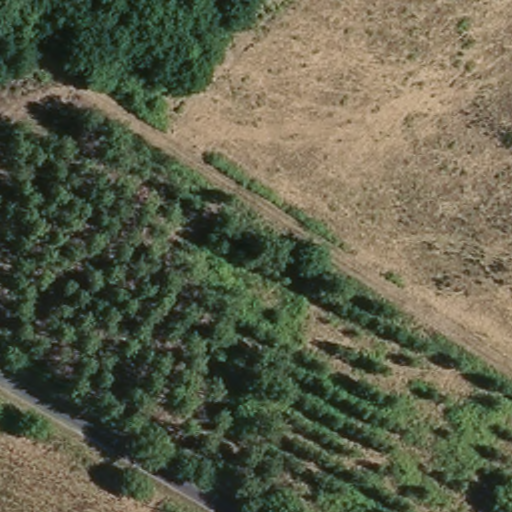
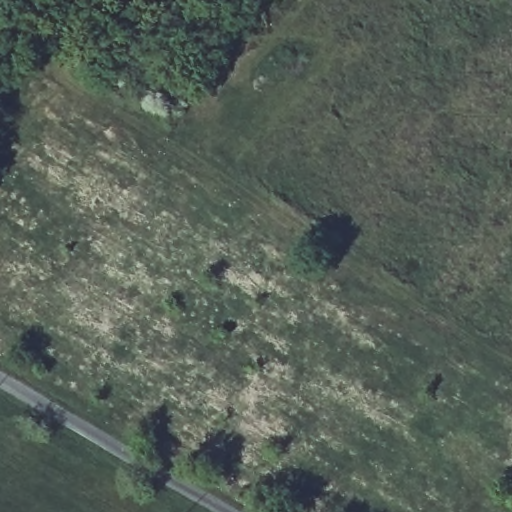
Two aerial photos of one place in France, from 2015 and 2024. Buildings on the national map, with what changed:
[]

